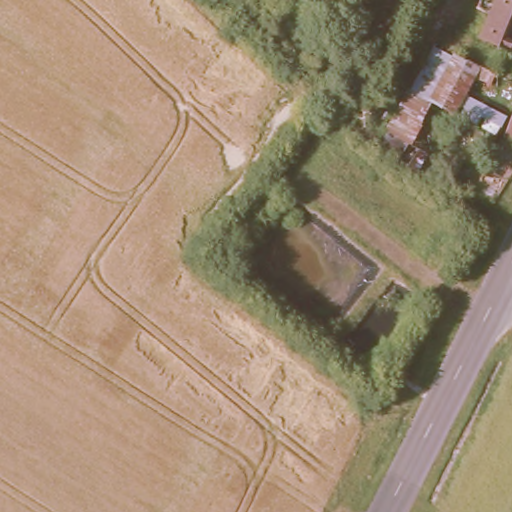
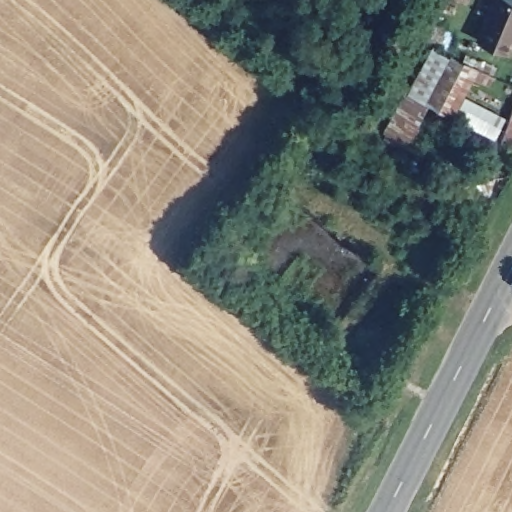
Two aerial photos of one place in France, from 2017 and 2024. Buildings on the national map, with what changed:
unchanged [(512,55),(482,44),(499,0),(505,0),(512,3),(512,55)]
unchanged [(476,86),(464,96),(439,82),(451,59),(507,83),(498,96),(476,86)]
unchanged [(439,82),(464,96),(443,140),(441,139),(415,181),(401,170),(382,157),(403,116),(410,120),(431,78),(439,82)]
unchanged [(512,123),(512,143),(504,140),(512,123)]

